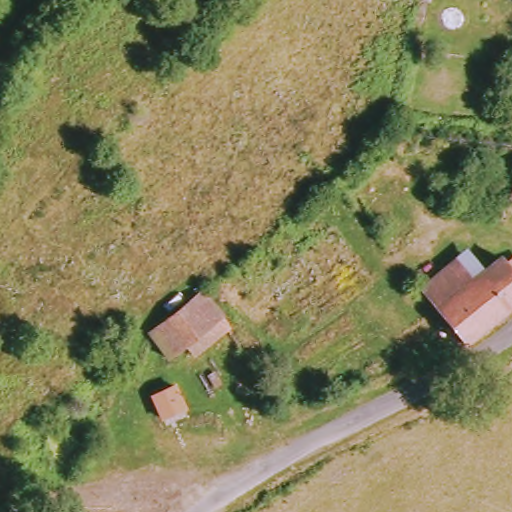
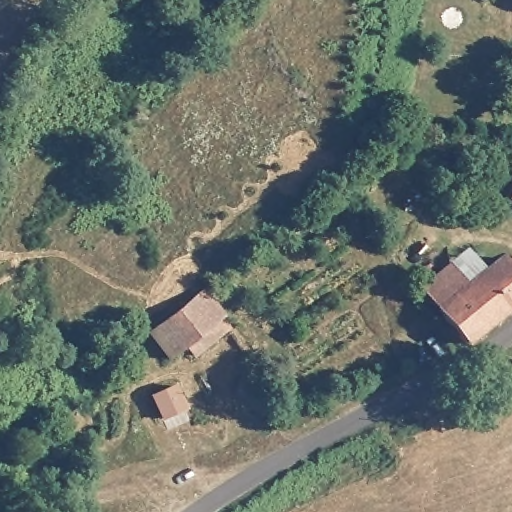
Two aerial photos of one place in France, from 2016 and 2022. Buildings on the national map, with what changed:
unchanged [(432,292),(474,255),(493,279),(450,315),(432,292)]
unchanged [(450,315),(493,279),(512,262),(512,312),(471,346),(450,315)]
unchanged [(184,351),(172,360),(153,332),(207,290),(226,317),(237,329),(193,364),(184,351)]
unchanged [(162,414),(162,396),(187,397),(186,414),(162,414)]

